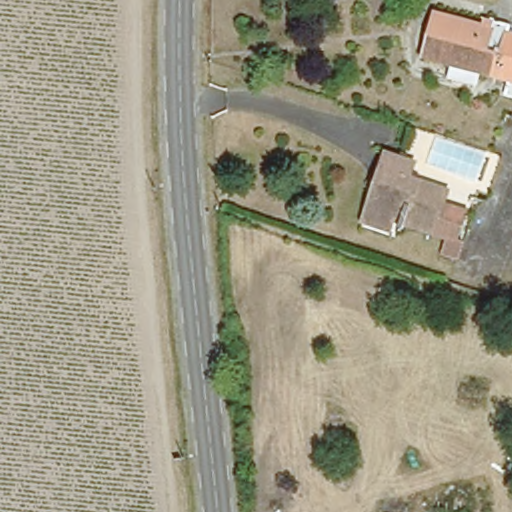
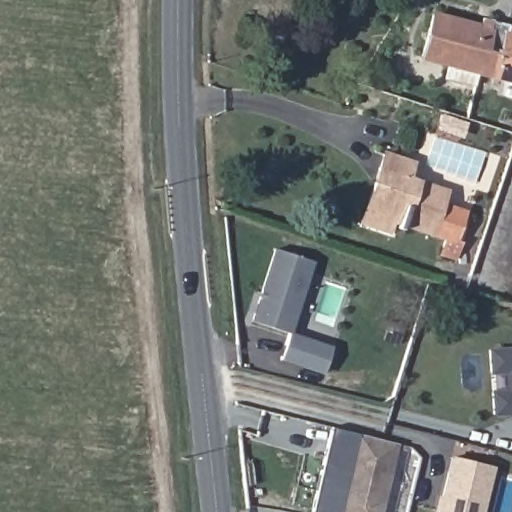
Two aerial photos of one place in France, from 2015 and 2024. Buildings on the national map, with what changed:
unchanged [(412,56),(426,16),(475,31),(480,15),(494,19),(512,25),(512,27),(511,32),(495,79),(468,72),(442,64),(412,56)]
unchanged [(512,32),(512,84),(495,79),(511,32),(512,32)]
unchanged [(386,150),(411,158),(405,175),(447,189),(443,200),(430,238),(395,226),(362,215),(386,150)]
unchanged [(443,200),(467,209),(456,242),(463,245),(458,262),(439,257),(443,242),(430,238),(443,200)]
new [(317,262),(294,332),(333,345),(324,374),(280,361),(289,332),(249,321),(275,247),(317,262)]
new [(512,346),(512,414),(494,416),(492,392),(510,391),(508,372),(491,373),(489,347),(512,346)]
new [(399,443),(383,512),(336,512),(354,432),(399,443)]
new [(497,467),(485,512),(439,512),(454,456),(497,467)]
demolished [(512,473),(512,512),(491,512),(504,471),(512,473)]

